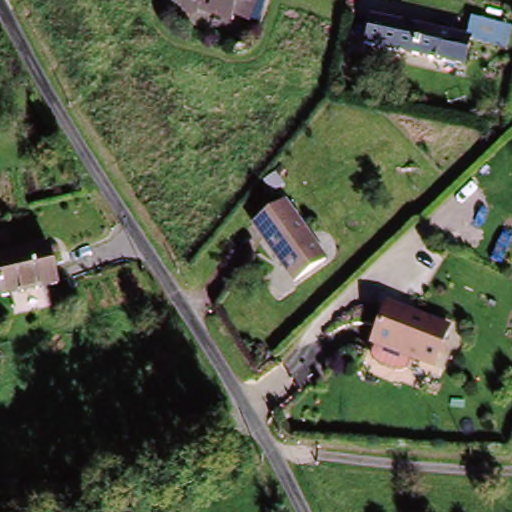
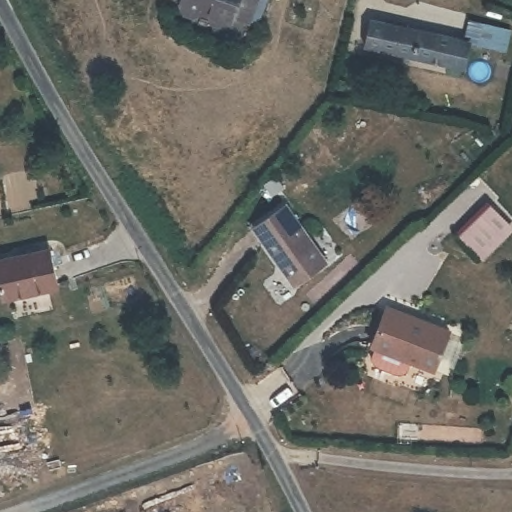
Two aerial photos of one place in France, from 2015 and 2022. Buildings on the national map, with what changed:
unchanged [(245,16),(230,10),(228,15),(197,3),(195,7),(189,11),(182,8),(179,1),(179,0),(252,0),(245,16)]
unchanged [(361,48),(367,23),(458,43),(453,66),(361,48)]
unchanged [(461,28),(489,35),(486,50),(458,43),(459,33),(461,28)]
new [(491,206),(512,229),(512,233),(483,261),(458,239),(491,206)]
unchanged [(287,207),(326,262),(294,285),(254,229),(287,207)]
unchanged [(50,289),(0,296),(0,293),(0,260),(45,254),(50,289)]
unchanged [(454,336),(439,375),(378,353),(393,314),(454,336)]

